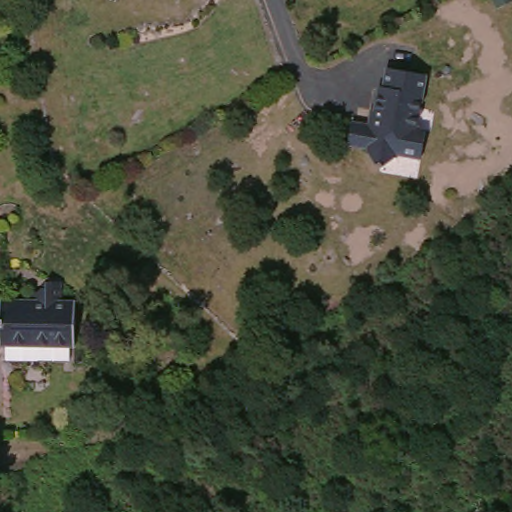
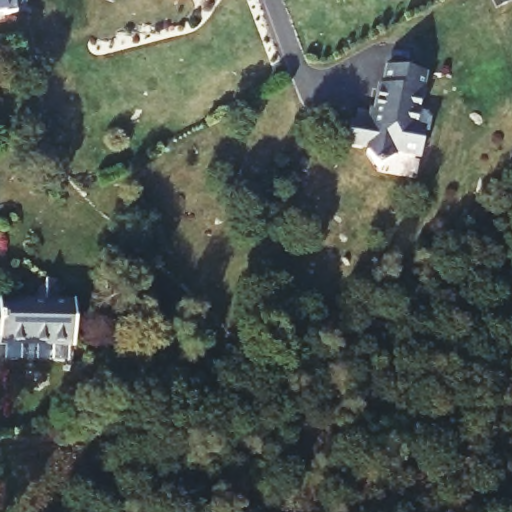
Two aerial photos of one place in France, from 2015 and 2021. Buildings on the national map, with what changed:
new [(17,18),(0,21),(0,0),(14,0),(17,18)]
unchanged [(430,83),(417,133),(426,137),(419,161),(396,157),(394,166),(378,176),(367,161),(368,153),(349,148),(355,127),(377,130),(382,117),(378,115),(384,91),(389,93),(394,72),(430,83)]
unchanged [(0,348),(0,304),(30,304),(30,289),(45,288),(45,285),(61,285),(60,305),(72,305),(72,351),(66,351),(48,350),(2,348),(0,348)]
unchanged [(2,348),(48,350),(66,351),(66,367),(2,365),(2,348)]

